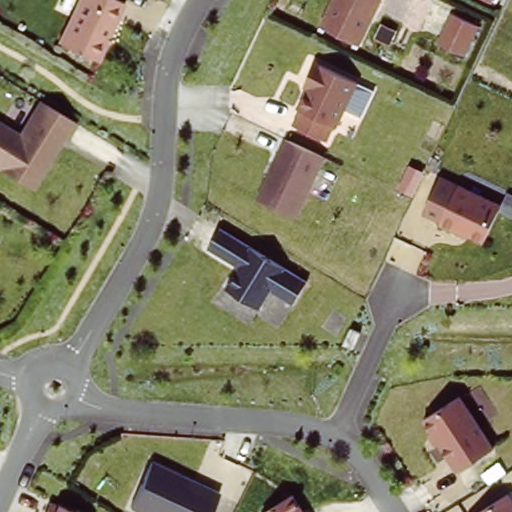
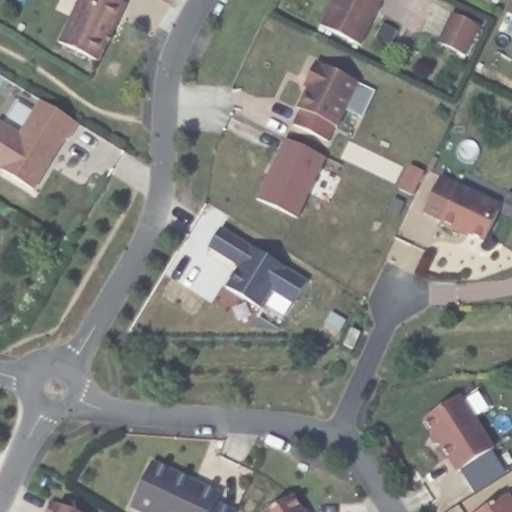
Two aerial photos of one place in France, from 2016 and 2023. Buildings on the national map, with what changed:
unchanged [(82,0),(118,0),(128,5),(100,62),(62,45),(82,0)]
unchanged [(331,0),(381,0),(359,45),(319,26),(331,0)]
unchanged [(482,26),(467,55),(440,42),(455,13),(482,26)]
unchanged [(327,142),(291,124),(299,109),(296,107),(306,87),(302,85),(305,79),(314,61),(356,82),(327,142)]
unchanged [(40,104),(58,115),(77,126),(67,141),(65,140),(32,187),(0,166),(0,118),(22,132),(40,104)]
unchanged [(285,139),(324,157),(295,218),(255,200),(285,139)]
unchanged [(500,205),(482,243),(439,224),(440,221),(422,212),(439,176),(500,205)]
unchanged [(251,247),(285,268),(307,279),(292,305),(270,292),(259,308),(224,288),(237,267),(207,249),(220,229),(251,247)]
unchanged [(462,396),(495,448),(455,473),(421,421),(462,396)]
unchanged [(210,512),(136,512),(130,510),(151,461),(220,492),(210,512)]
unchanged [(264,512),(292,495),(304,512),(264,512)]
unchanged [(512,500),(512,512),(479,512),(509,495),(512,500)]
unchanged [(72,512),(46,512),(50,502),(57,506),(72,512)]

